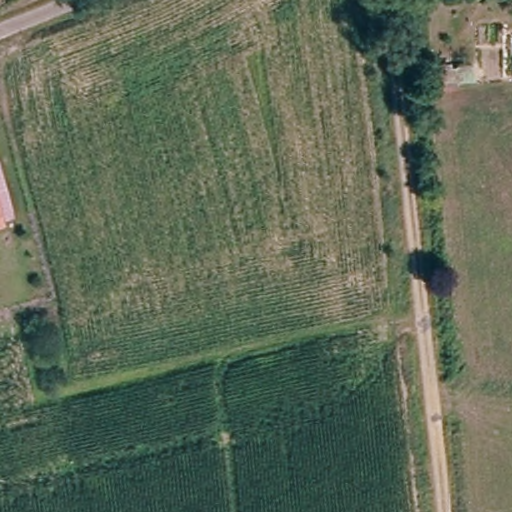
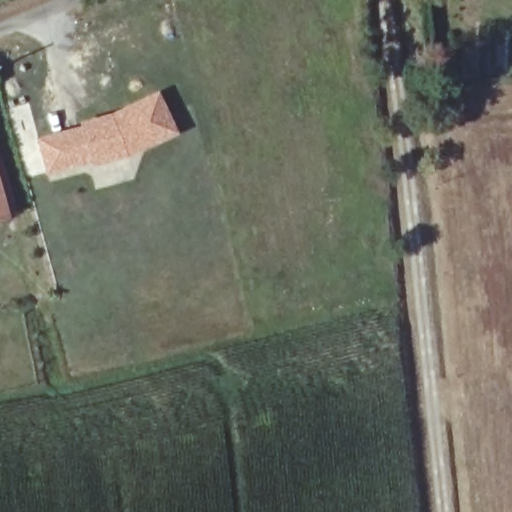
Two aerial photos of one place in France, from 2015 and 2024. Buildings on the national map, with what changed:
new [(127,158),(94,166),(92,162),(45,174),(37,139),(84,126),(82,121),(111,115),(158,93),(177,134),(127,158)]
unchanged [(7,218),(0,220),(0,190),(7,218)]

